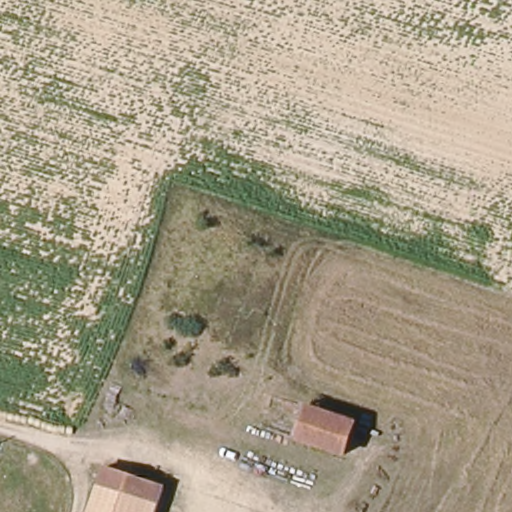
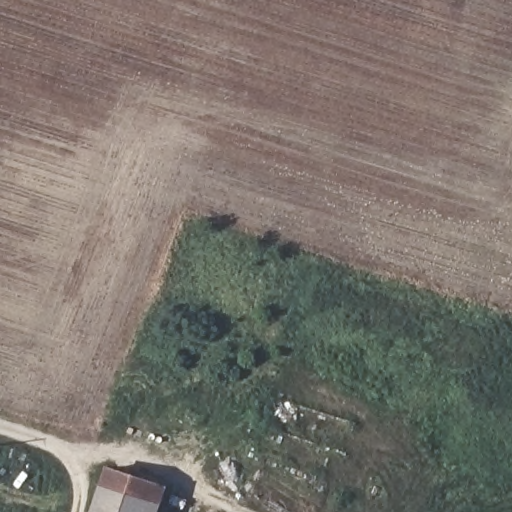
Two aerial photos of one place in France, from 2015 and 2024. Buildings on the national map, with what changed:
demolished [(265,428),(276,397),(353,424),(342,454),(265,428)]
unchanged [(92,512),(102,483),(107,474),(163,494),(161,500),(157,512),(92,512)]

